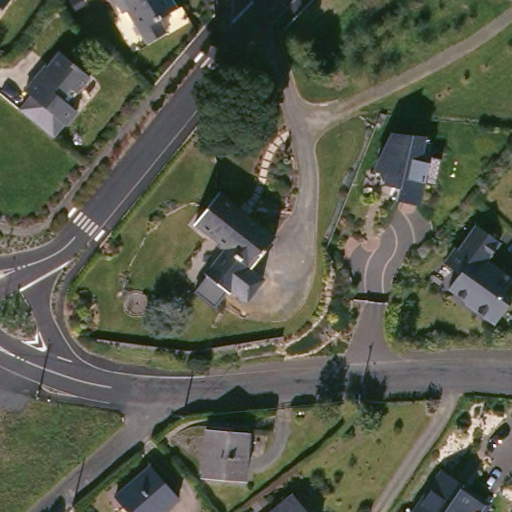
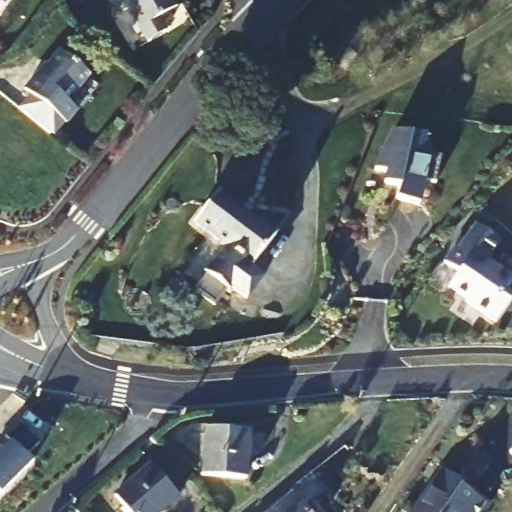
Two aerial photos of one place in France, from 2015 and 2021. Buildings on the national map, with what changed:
unchanged [(19,0),(0,25),(0,0),(19,0)]
unchanged [(170,20),(177,33),(159,44),(140,11),(135,14),(128,0),(183,0),(188,9),(170,20)]
unchanged [(81,100),(91,107),(80,121),(78,120),(66,133),(34,106),(45,92),(39,87),(53,70),(55,71),(74,49),(103,73),(81,100)]
unchanged [(422,128),(418,146),(438,151),(432,176),(421,174),(415,197),(392,192),(395,180),(381,176),(384,165),(372,162),(390,125),(422,128)]
unchanged [(208,215),(233,183),(289,229),(263,261),(277,273),(262,292),(246,280),(242,286),(219,266),(239,240),(208,215)]
unchanged [(462,295),(464,292),(446,280),(456,265),(442,255),(453,239),(456,241),(473,217),(497,234),(483,254),(495,262),(495,261),(510,271),(500,286),(508,292),(491,315),(462,295)]
new [(11,441),(6,438),(19,425),(39,445),(25,459),(30,465),(0,496),(0,453),(11,441)]
unchanged [(259,434),(254,477),(209,472),(213,430),(259,434)]
unchanged [(175,512),(135,512),(123,498),(158,467),(188,500),(175,512)]
unchanged [(502,506),(498,512),(424,512),(453,471),(502,506)]
unchanged [(319,512),(273,512),(300,490),(319,512)]

